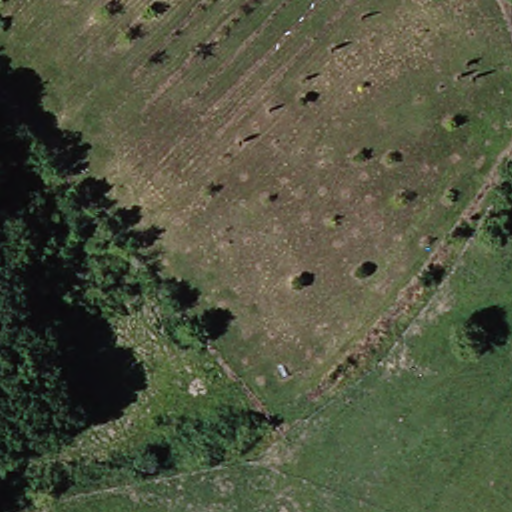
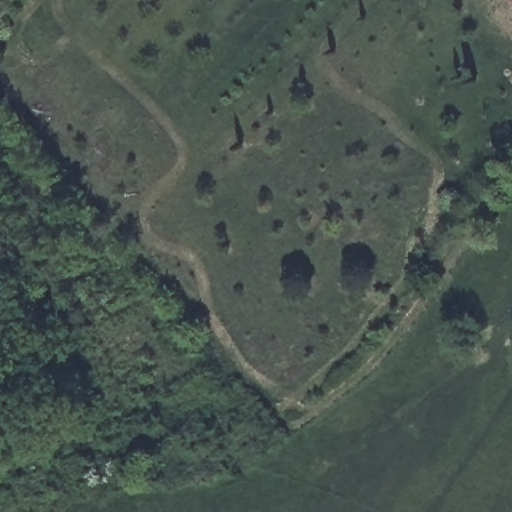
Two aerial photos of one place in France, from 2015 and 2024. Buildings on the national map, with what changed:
[]

